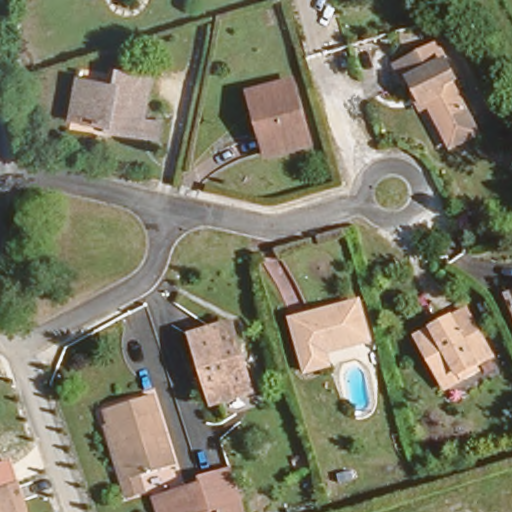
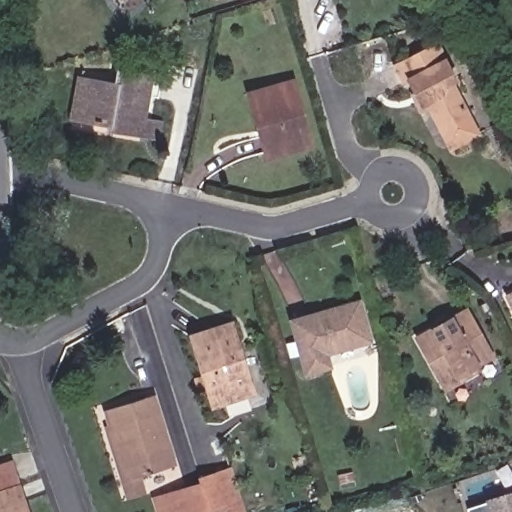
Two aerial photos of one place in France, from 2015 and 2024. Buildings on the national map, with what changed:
unchanged [(454,150),(446,135),(432,110),(421,115),(405,82),(402,84),(396,72),(439,49),(457,84),(451,87),(469,122),(478,138),(454,150)]
unchanged [(108,65),(151,68),(147,115),(158,116),(156,131),(104,127),(104,119),(71,115),(75,75),(108,77),(108,65)]
unchanged [(269,148),(251,86),(286,75),(305,136),(269,148)]
unchanged [(503,290),(512,286),(512,312),(503,290)]
unchanged [(325,342),(328,359),(300,366),(287,310),(357,292),(367,332),(325,342)]
unchanged [(435,382),(412,327),(470,305),(491,357),(435,382)]
unchanged [(233,313),(252,386),(213,395),(193,324),(233,313)]
unchanged [(135,471),(118,419),(113,421),(107,401),(157,386),(179,457),(143,468),(135,471)]
unchanged [(149,486),(125,495),(105,423),(113,421),(118,419),(135,471),(143,468),(149,486)]
unchanged [(208,503),(199,476),(197,470),(229,460),(239,495),(245,512),(232,512),(228,498),(208,503)]
unchanged [(191,512),(155,512),(149,492),(162,488),(199,476),(208,503),(208,506),(211,512),(199,512),(198,510),(191,512)]
unchanged [(31,512),(0,512),(0,489),(20,482),(31,512)]
new [(512,491),(512,512),(467,512),(465,505),(512,491)]

